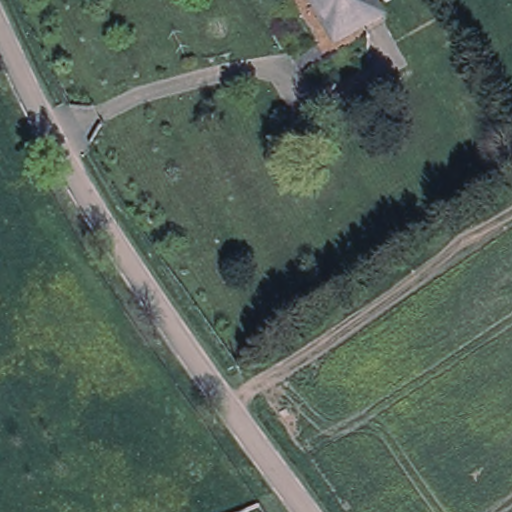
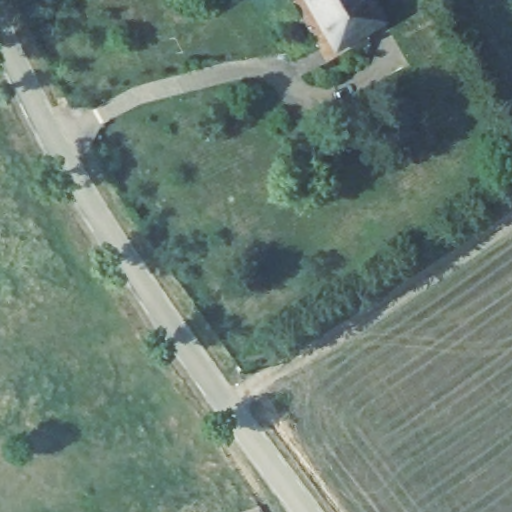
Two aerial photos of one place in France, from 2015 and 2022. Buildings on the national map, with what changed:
unchanged [(390,11),(372,21),(377,30),(335,53),(304,0),(383,0),(390,11)]

